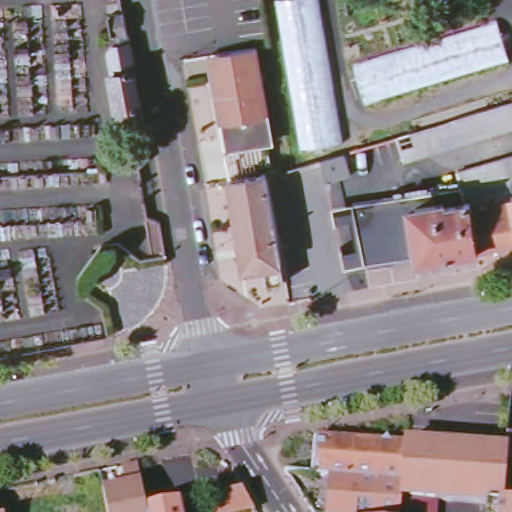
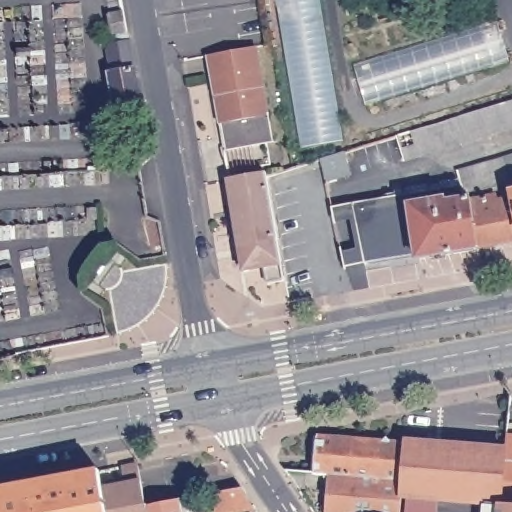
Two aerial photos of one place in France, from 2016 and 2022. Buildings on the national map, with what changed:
unchanged [(300,147),(275,0),(320,0),(344,140),(300,147)]
unchanged [(140,109),(117,113),(110,75),(113,75),(110,53),(113,46),(122,45),(120,36),(113,37),(110,15),(123,13),(140,109)]
unchanged [(353,62),(497,22),(510,59),(364,102),(353,62)]
unchanged [(237,145),(223,134),(222,122),(218,124),(210,77),(207,57),(221,55),(256,49),(259,67),(272,139),(237,145)]
unchanged [(512,100),(512,128),(407,161),(400,133),(512,100)]
unchanged [(318,158),(345,150),(350,174),(323,180),(318,158)]
unchanged [(470,197),(471,200),(463,201),(460,186),(457,172),(512,155),(512,184),(470,197)]
unchanged [(278,235),(286,279),(268,282),(265,265),(247,268),(227,176),(265,170),(265,175),(278,235)]
unchanged [(418,256),(418,252),(365,262),(350,202),(460,186),(463,201),(471,200),(472,207),(479,246),(418,256)]
unchanged [(472,207),(497,202),(498,207),(512,204),(512,240),(479,246),(472,207)]
unchanged [(278,235),(329,226),(332,247),(342,245),(345,270),(286,279),(278,235)]
unchanged [(501,449),(503,424),(511,425),(510,438),(512,438),(512,507),(495,505),(501,449)]
unchanged [(482,503),(435,497),(403,493),(398,492),(400,477),(325,472),(312,471),(313,448),(314,436),(357,440),(402,444),(402,441),(501,449),(495,505),(490,504),(482,503)]
unchanged [(103,486),(127,482),(122,466),(138,463),(147,505),(148,512),(109,512),(103,486)]
new [(0,484),(100,467),(103,486),(109,512),(0,512),(0,484)]
unchanged [(323,505),(324,490),(325,472),(400,477),(398,492),(397,512),(323,512),(323,505)]
unchanged [(239,491),(251,510),(241,512),(218,512),(214,496),(239,491)]
unchanged [(433,512),(397,512),(398,492),(403,493),(435,497),(433,512)]
unchanged [(147,505),(179,499),(182,512),(148,512),(147,505)]
unchanged [(490,504),(495,505),(512,507),(512,512),(489,512),(490,504)]

